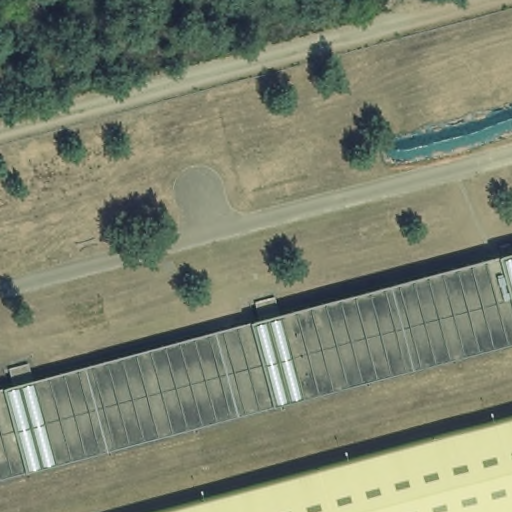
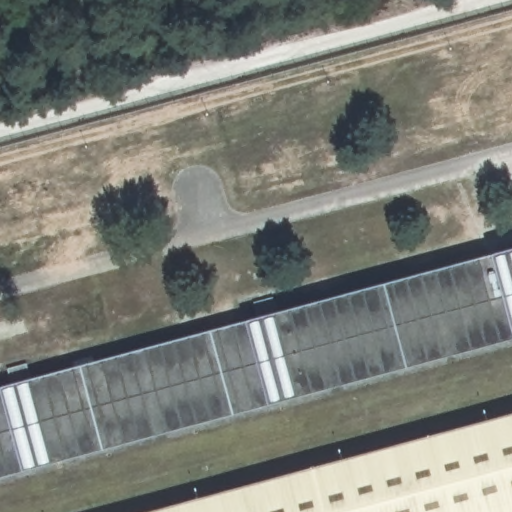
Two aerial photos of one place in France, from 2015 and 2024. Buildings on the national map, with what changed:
unchanged [(23,472),(0,478),(0,385),(488,255),(512,248),(512,338),(23,472)]
unchanged [(512,413),(512,512),(146,512),(512,413)]

